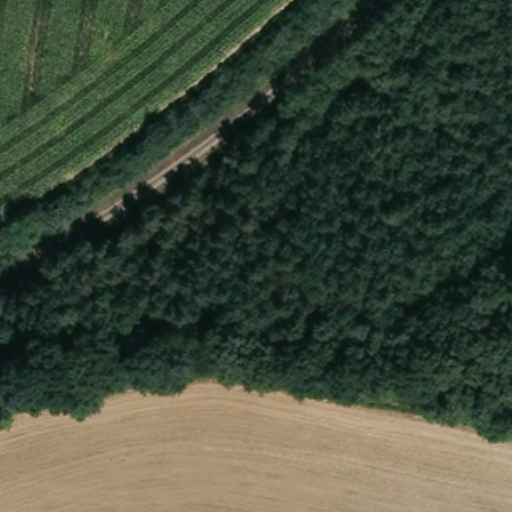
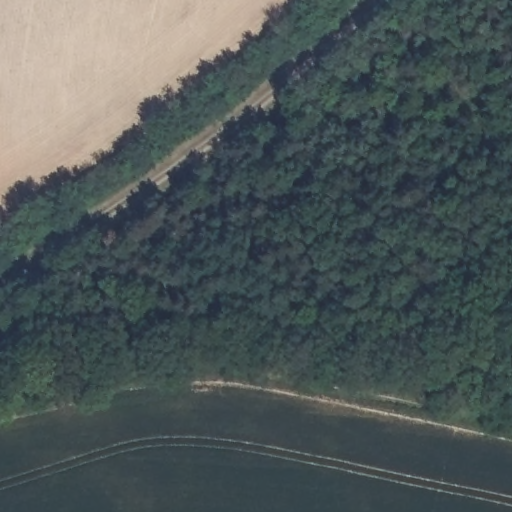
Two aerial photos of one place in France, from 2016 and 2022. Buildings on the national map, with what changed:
[]

